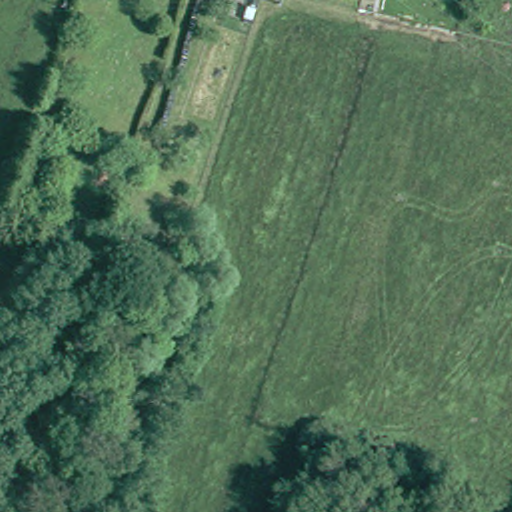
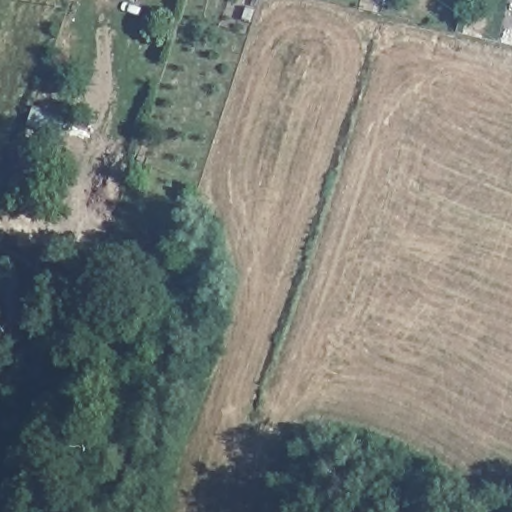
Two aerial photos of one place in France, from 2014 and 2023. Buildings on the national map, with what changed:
unchanged [(88,247),(84,257),(72,252),(75,243),(88,247)]

